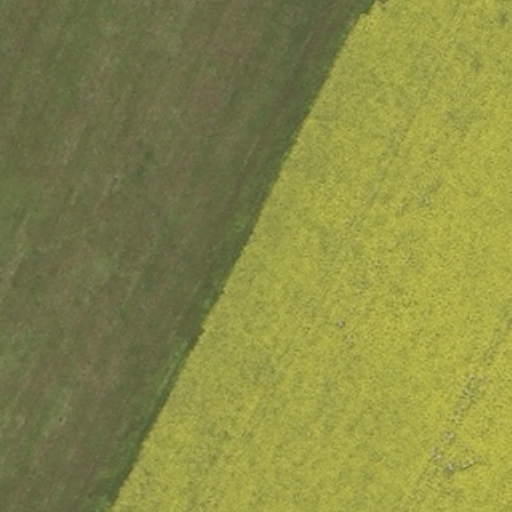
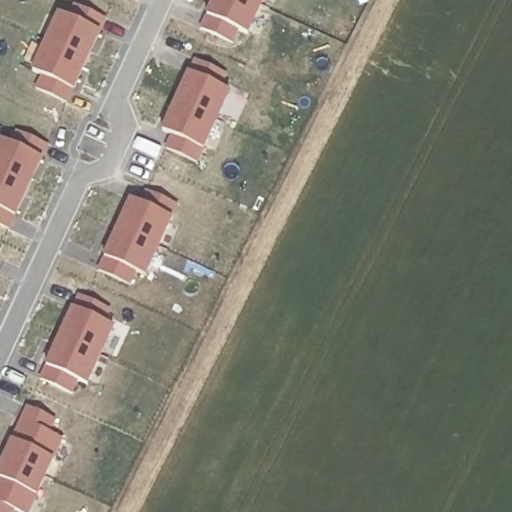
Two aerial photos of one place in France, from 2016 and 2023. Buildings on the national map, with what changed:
new [(202,29),(215,0),(264,0),(250,34),(239,29),(233,43),(202,29)]
new [(39,89),(45,74),(36,70),(61,14),(72,18),(78,6),(106,19),(68,102),(39,89)]
new [(167,149),(173,134),(164,130),(197,59),(228,73),(223,87),(232,91),(200,163),(167,149)]
new [(3,140),(13,144),(18,132),(48,146),(9,228),(0,224),(0,147),(3,140)]
new [(99,270),(131,200),(141,204),(147,192),(179,206),(147,275),(137,271),(131,284),(99,270)]
new [(41,378),(79,294),(111,309),(106,322),(114,325),(88,383),(78,379),(73,393),(41,378)]
new [(30,405),(56,417),(49,434),(63,439),(27,512),(21,512),(14,508),(12,512),(0,512),(0,469),(30,405)]

